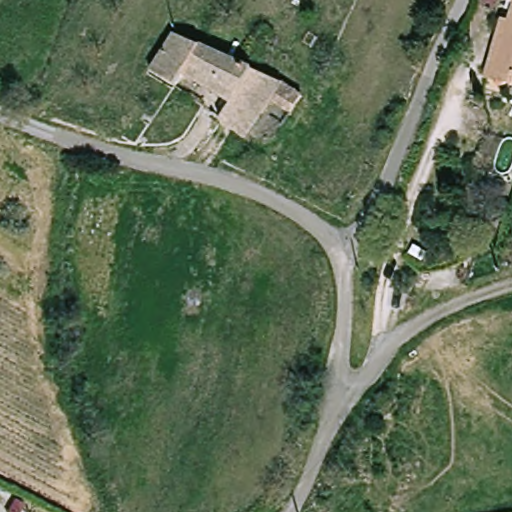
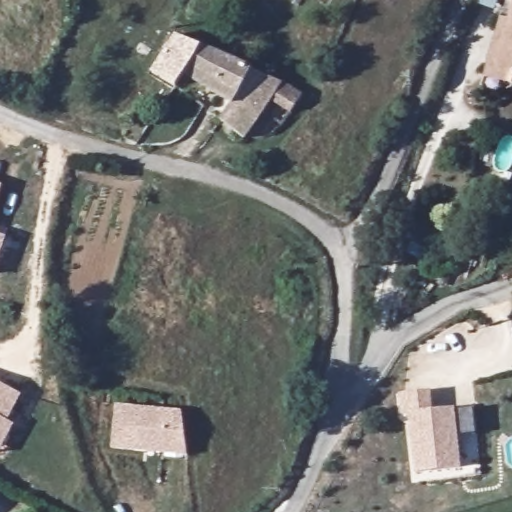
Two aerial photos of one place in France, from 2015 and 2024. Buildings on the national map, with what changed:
unchanged [(508,0),(512,0),(512,14),(504,11),(508,0)]
unchanged [(512,20),(512,87),(489,79),(512,20)]
unchanged [(299,96),(289,114),(269,104),(261,117),(254,114),(247,127),(221,114),(229,96),(183,72),(175,84),(148,69),(173,34),(299,96)]
new [(2,185),(0,191),(0,184),(2,185)]
new [(7,237),(0,254),(0,234),(7,237)]
new [(22,395),(7,420),(14,424),(0,451),(0,383),(22,395)]
new [(400,393),(431,390),(434,410),(455,408),(462,468),(415,473),(408,415),(402,415),(400,393)]
new [(188,456),(112,449),(117,405),(182,411),(188,456)]

